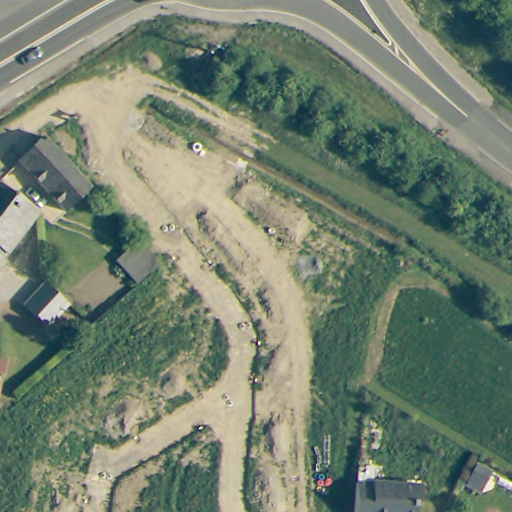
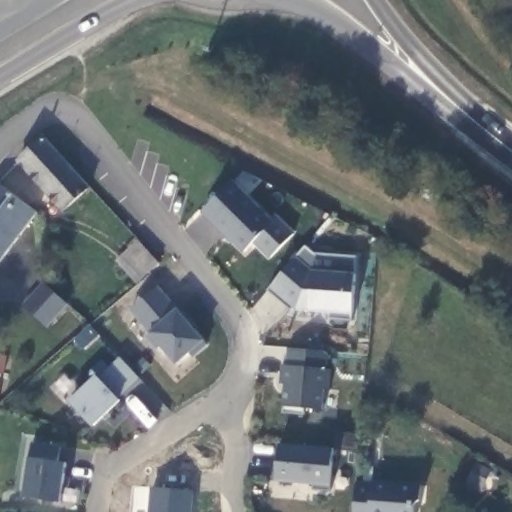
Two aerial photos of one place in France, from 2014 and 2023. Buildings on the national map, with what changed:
unchanged [(44,136),(87,186),(61,210),(15,161),(44,136)]
new [(245,254),(201,213),(234,181),(275,222),(245,254)]
unchanged [(38,212),(0,261),(0,182),(1,182),(38,212)]
new [(255,243),(275,222),(278,218),(297,235),(272,262),(255,243)]
new [(137,286),(115,263),(138,240),(161,264),(137,286)]
new [(358,275),(356,315),(354,322),(330,321),(331,313),(299,311),(294,308),(291,312),(268,292),(305,247),(317,255),(358,258),(358,275)]
new [(48,330),(21,306),(43,281),(70,305),(48,330)]
new [(206,340),(209,344),(194,357),(190,355),(179,365),(162,345),(159,349),(146,335),(150,331),(131,310),(159,286),(206,340)]
new [(328,369),(333,370),(330,389),(326,389),(324,410),(306,409),(306,414),(283,412),(286,384),(281,384),(282,365),(287,365),(289,349),(330,353),(328,369)]
unchanged [(100,375),(94,369),(104,360),(109,366),(121,356),(140,379),(95,428),(70,402),(100,375)]
new [(58,461),(68,462),(63,502),(25,497),(29,458),(31,444),(61,448),(58,461)]
new [(332,485),(332,492),(313,490),(313,484),(277,481),(281,444),(336,448),(332,485)]
unchanged [(356,504),(358,485),(375,487),(376,485),(423,489),(422,504),(417,508),(417,512),(355,512),(356,504)]

